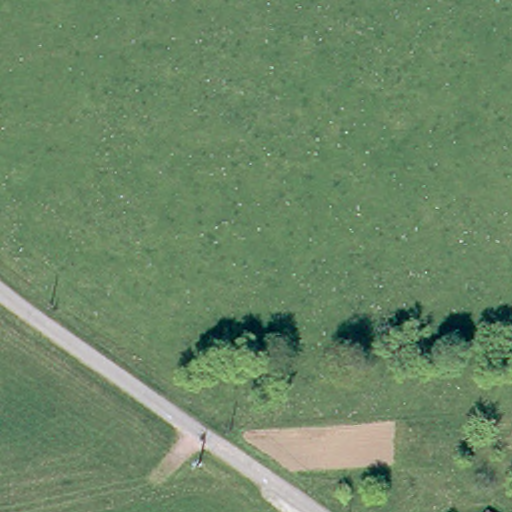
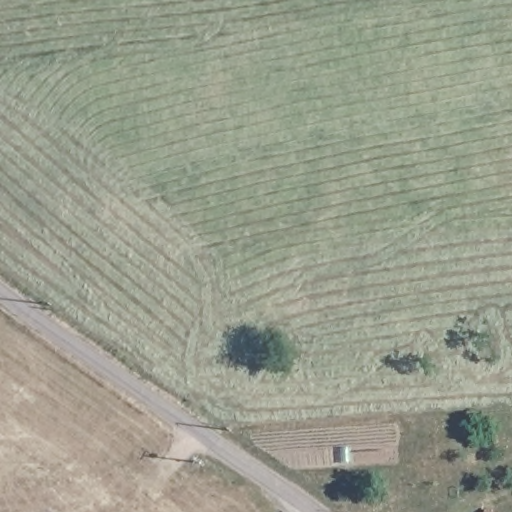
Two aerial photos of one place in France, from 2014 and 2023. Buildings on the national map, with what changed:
unchanged [(482,509),(487,512),(480,512),(482,509)]

